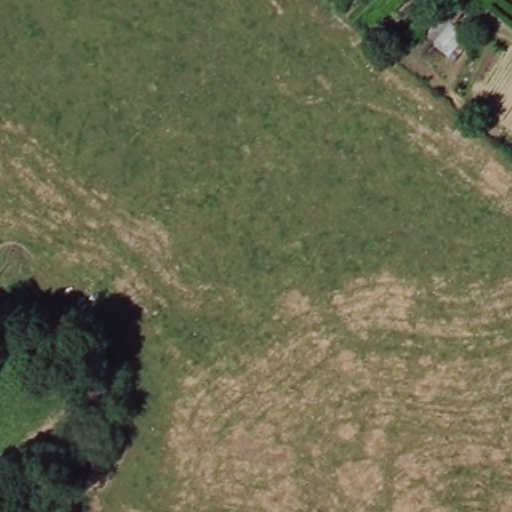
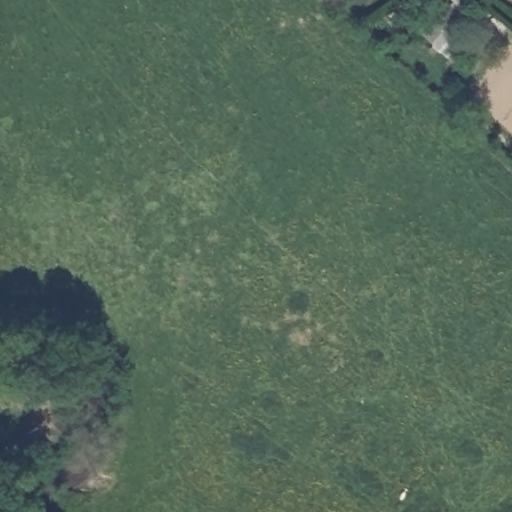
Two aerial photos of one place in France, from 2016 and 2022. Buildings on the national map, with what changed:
unchanged [(457,0),(476,0),(462,19),(459,17),(451,26),(477,39),(461,71),(431,54),(434,43),(432,44),(423,31),(447,17),(457,0)]

